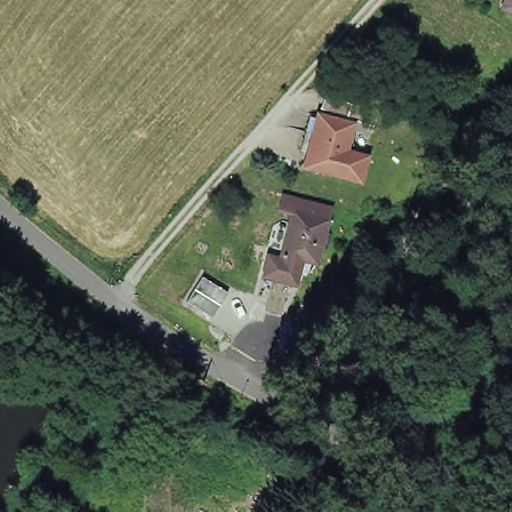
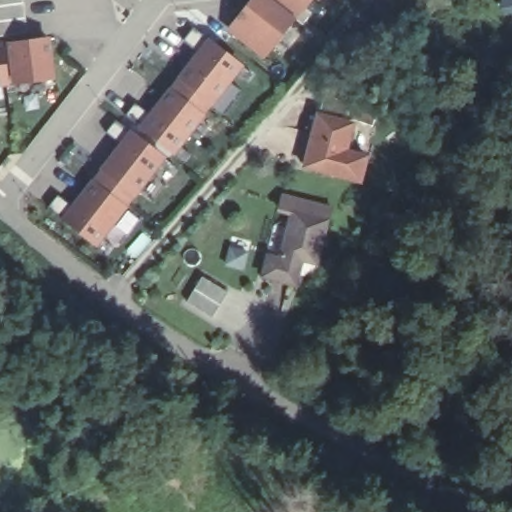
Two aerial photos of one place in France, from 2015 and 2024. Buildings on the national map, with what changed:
new [(23,0),(27,33),(0,36),(0,0),(23,0)]
new [(311,14),(303,24),(296,19),(264,59),(227,30),(250,0),(313,0),(307,8),(311,14)]
unchanged [(496,5),(498,0),(512,0),(512,12),(510,10),(496,5)]
new [(186,161),(176,154),(139,126),(125,114),(135,103),(149,114),(198,51),(184,40),(194,28),(208,39),(243,66),(253,74),(247,81),(238,75),(181,146),(191,155),(186,161)]
new [(55,79),(13,85),(8,43),(50,37),(55,79)]
new [(9,86),(0,88),(0,43),(4,42),(9,86)]
unchanged [(361,183),(341,177),(305,167),(306,164),(320,115),(343,122),(356,125),(348,154),(368,160),(361,183)]
new [(113,247),(106,254),(97,247),(61,219),(49,208),(58,195),(71,205),(119,144),(106,133),(115,120),(129,130),(166,158),(174,165),(169,173),(160,166),(104,239),(113,247)]
unchanged [(271,249),(284,206),(272,202),(276,188),(322,203),(318,217),(306,259),(296,269),(289,266),(284,280),(252,271),(258,251),(270,254),(271,249)]
unchanged [(80,500),(71,512),(46,512),(36,507),(51,484),(80,500)]

